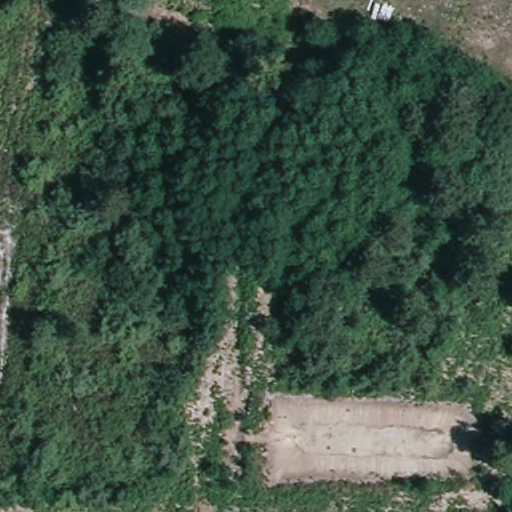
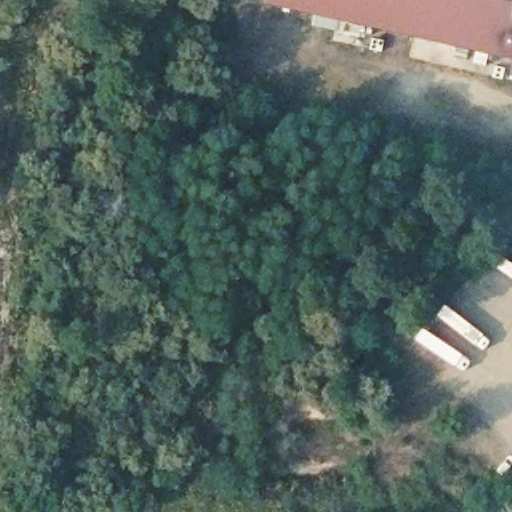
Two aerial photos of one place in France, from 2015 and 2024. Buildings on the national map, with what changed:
new [(267,0),(512,0),(512,55),(267,0)]

